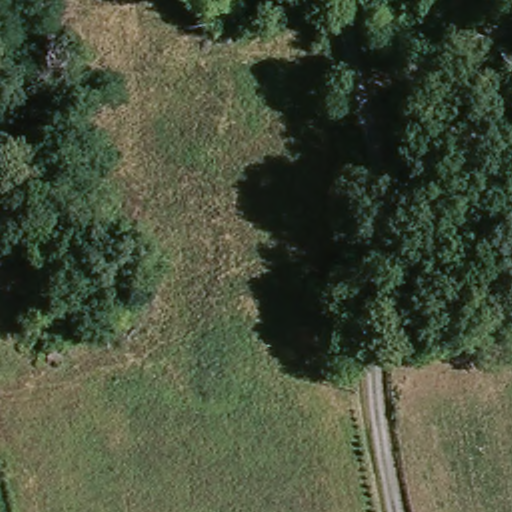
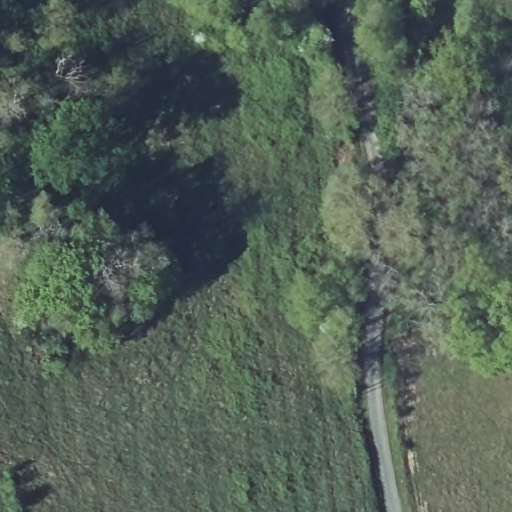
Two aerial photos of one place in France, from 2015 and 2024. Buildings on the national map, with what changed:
unchanged [(60,344),(59,361),(41,362),(41,343),(60,344)]

